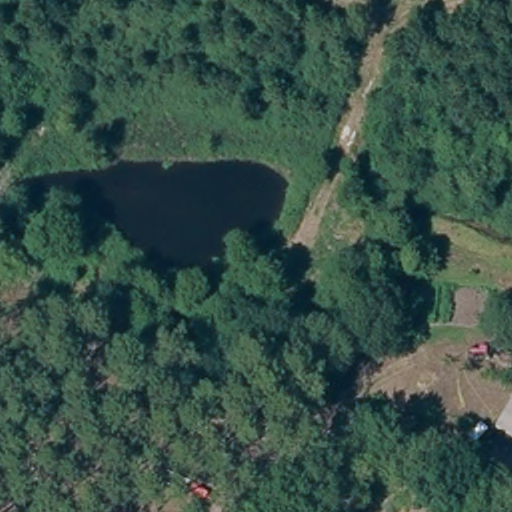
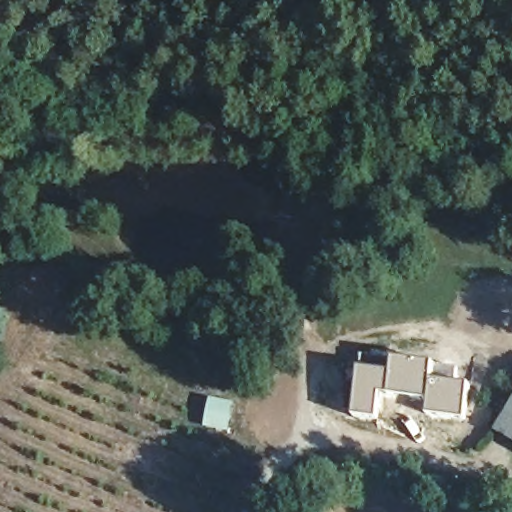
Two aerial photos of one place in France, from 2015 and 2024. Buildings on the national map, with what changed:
new [(362,353),(393,357),(387,396),(381,395),(377,421),(353,418),(362,353)]
new [(393,357),(433,360),(427,401),(387,396),(393,357)]
new [(427,401),(433,360),(458,364),(457,380),(471,382),(465,422),(424,415),(427,401)]
unchanged [(512,400),(512,446),(490,431),(512,400)]

